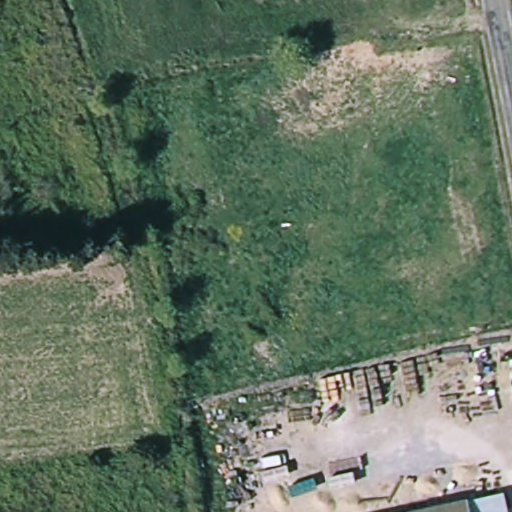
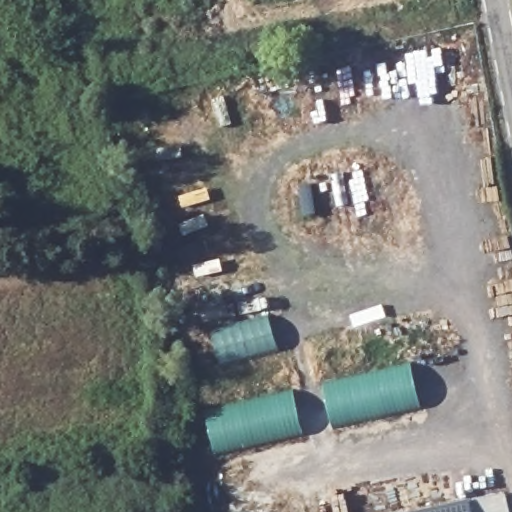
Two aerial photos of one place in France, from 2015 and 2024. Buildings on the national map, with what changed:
new [(422,408),(333,430),(322,383),(409,361),(422,408)]
new [(303,435),(214,454),(204,409),(293,388),(303,435)]
unchanged [(475,512),(415,512),(472,501),(475,512)]
unchanged [(511,512),(484,512),(510,507),(511,512)]

